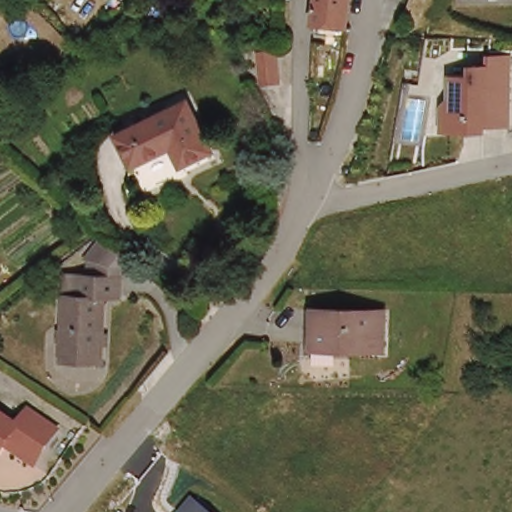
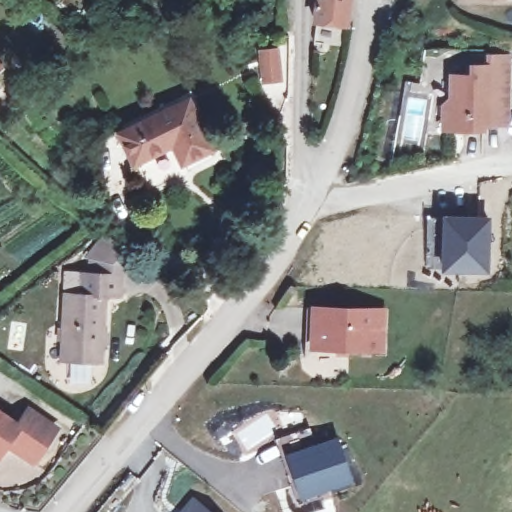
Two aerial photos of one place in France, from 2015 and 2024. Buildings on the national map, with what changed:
unchanged [(315,20),(316,0),(349,0),(348,22),(315,20)]
unchanged [(265,83),(265,50),(282,51),(283,83),(265,83)]
unchanged [(508,58),(507,128),(485,128),(485,124),(473,124),(473,133),(445,132),(445,108),(452,100),(453,78),(473,78),(473,68),(490,68),(490,58),(508,58)]
unchanged [(117,132),(186,101),(208,152),(177,165),(170,145),(130,161),(117,132)]
new [(490,216),(489,273),(440,272),(438,241),(430,242),(426,215),(490,216)]
unchanged [(90,259),(105,239),(131,257),(122,272),(106,271),(90,259)]
unchanged [(121,301),(105,298),(97,364),(56,358),(65,292),(68,269),(80,271),(123,277),(121,301)]
unchanged [(315,348),(315,308),(382,305),(383,347),(315,348)]
unchanged [(12,426),(24,412),(50,433),(23,465),(0,446),(0,415),(12,426)]
new [(285,454),(338,437),(353,481),(301,498),(285,454)]
unchanged [(191,494),(212,512),(178,512),(191,494)]

